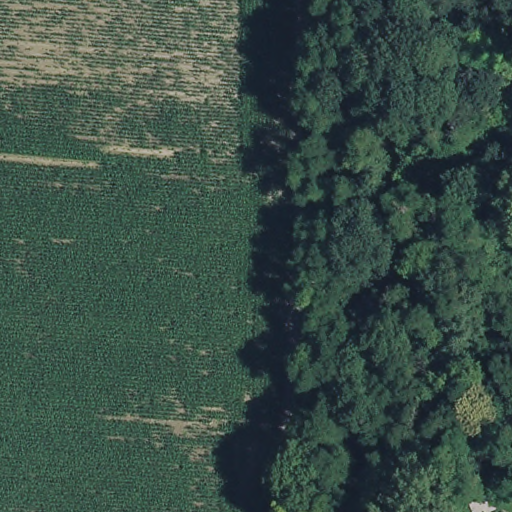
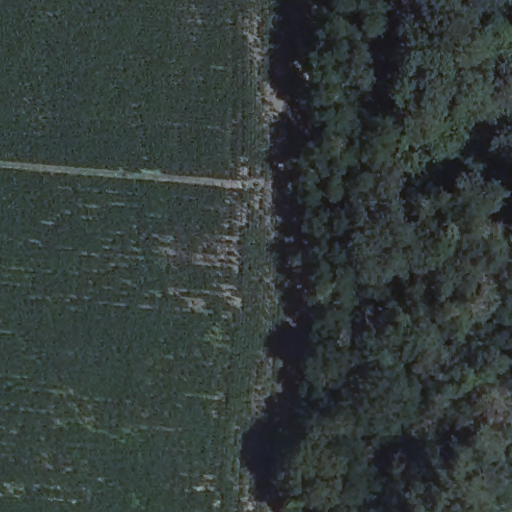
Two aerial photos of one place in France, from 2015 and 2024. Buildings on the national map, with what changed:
unchanged [(487,512),(472,512),(470,505),(491,496),(496,508),(487,512)]

